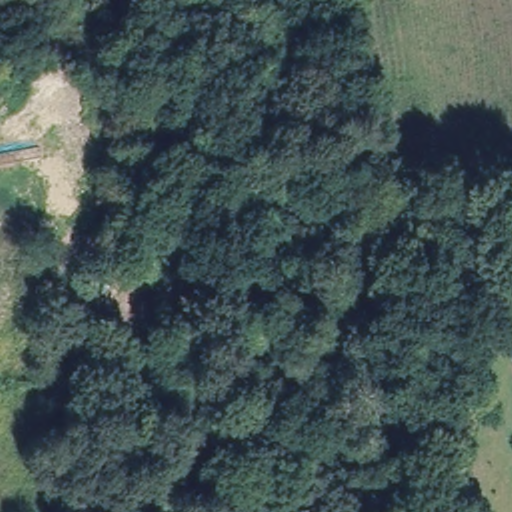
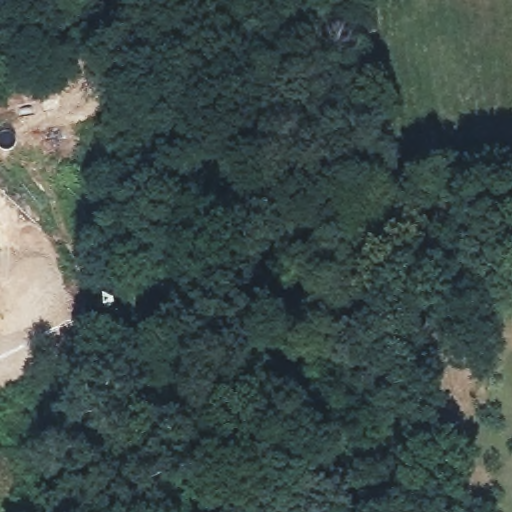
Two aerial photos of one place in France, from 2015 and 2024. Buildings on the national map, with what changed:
[]

